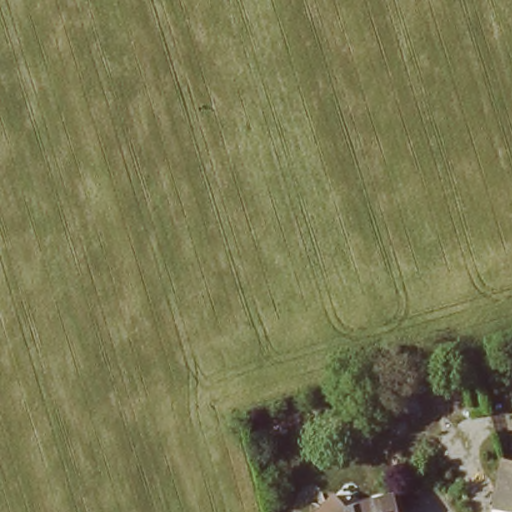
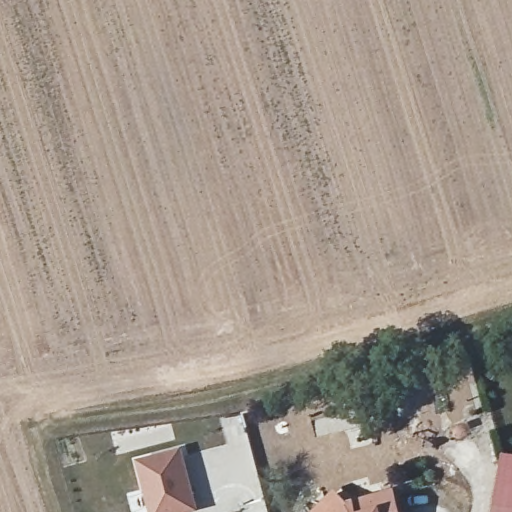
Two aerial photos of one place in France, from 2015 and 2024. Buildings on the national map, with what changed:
new [(182,448),(199,512),(149,512),(136,461),(182,448)]
unchanged [(505,458),(512,459),(512,512),(495,512),(505,458)]
unchanged [(353,504),(399,493),(404,512),(342,512),(353,504)]

